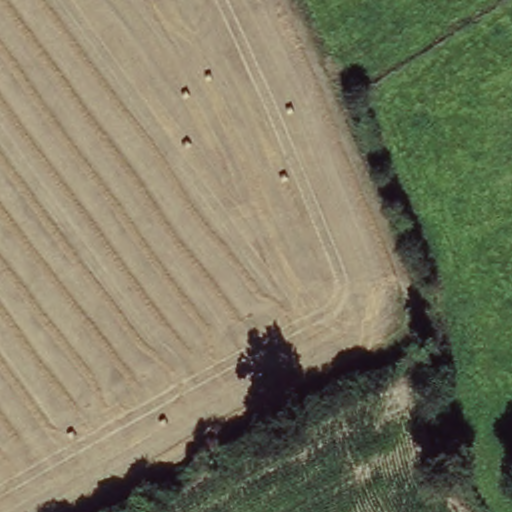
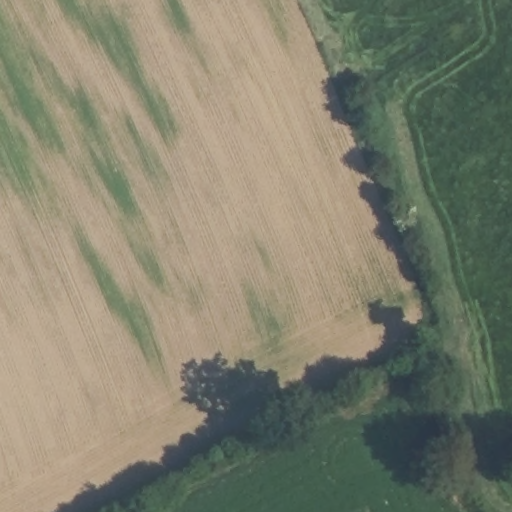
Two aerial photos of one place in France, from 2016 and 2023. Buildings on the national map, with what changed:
[]

